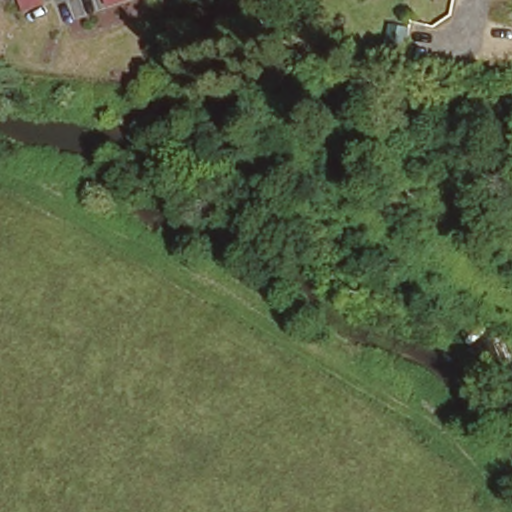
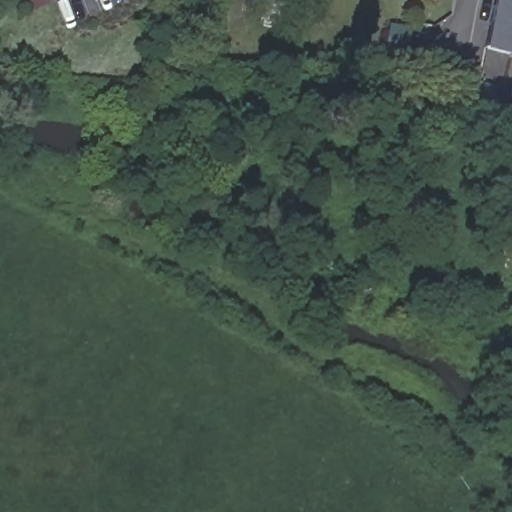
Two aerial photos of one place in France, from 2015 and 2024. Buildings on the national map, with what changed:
unchanged [(22,0),(47,0),(49,7),(26,14),(22,0)]
unchanged [(108,0),(135,0),(110,8),(108,0)]
unchanged [(264,0),(280,3),(277,23),(260,20),(264,0)]
new [(484,51),(493,0),(512,0),(512,59),(484,51)]
demolished [(489,70),(489,52),(512,50),(512,69),(489,70)]
unchanged [(265,58),(273,59),(272,67),(264,67),(265,58)]
unchanged [(508,267),(512,251),(512,268),(508,267)]

